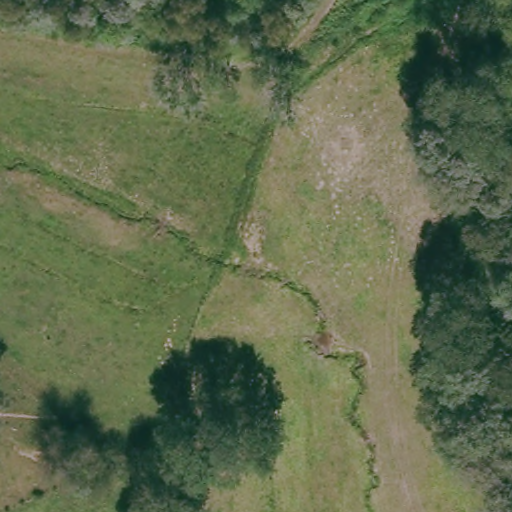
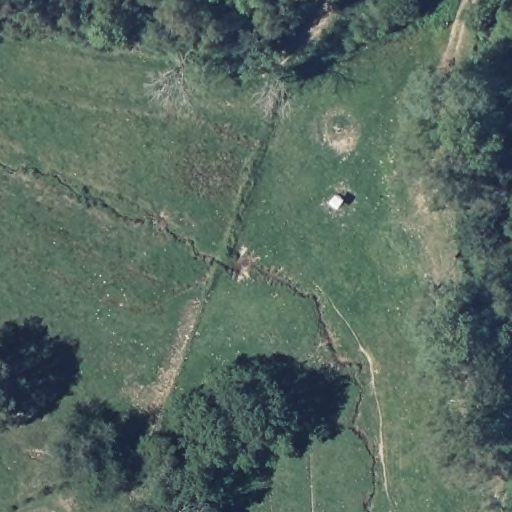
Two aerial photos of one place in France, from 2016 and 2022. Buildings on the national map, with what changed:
unchanged [(293,31),(276,36),(273,24),(288,18),(293,31)]

